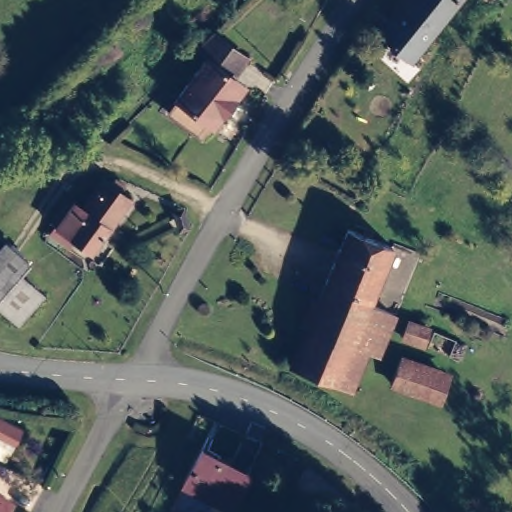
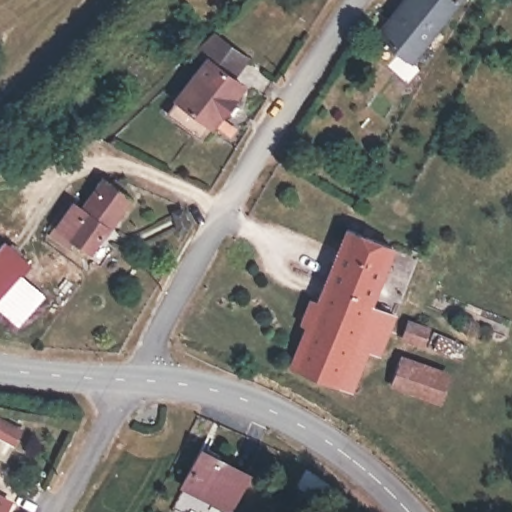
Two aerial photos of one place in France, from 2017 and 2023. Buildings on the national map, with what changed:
unchanged [(409,0),(446,0),(455,7),(405,72),(372,46),(409,0)]
unchanged [(173,100),(171,98),(200,59),(188,50),(207,32),(242,57),(227,76),(238,84),(207,125),(205,124),(197,136),(164,112),(173,100)]
unchanged [(47,245),(53,237),(71,211),(80,218),(102,188),(110,193),(113,188),(124,195),(120,200),(128,206),(89,262),(72,250),(67,258),(47,245)]
unchanged [(341,234),(386,251),(363,309),(387,319),(371,359),(360,354),(343,396),(286,374),(341,234)]
unchanged [(15,279),(37,299),(12,328),(0,318),(0,248),(24,268),(15,279)]
unchanged [(407,321),(430,329),(424,345),(402,337),(407,321)]
unchanged [(410,355),(458,371),(450,396),(402,380),(410,355)]
unchanged [(195,451),(242,474),(225,509),(178,485),(195,451)]
unchanged [(0,505),(5,507),(2,512),(0,512),(0,505)]

